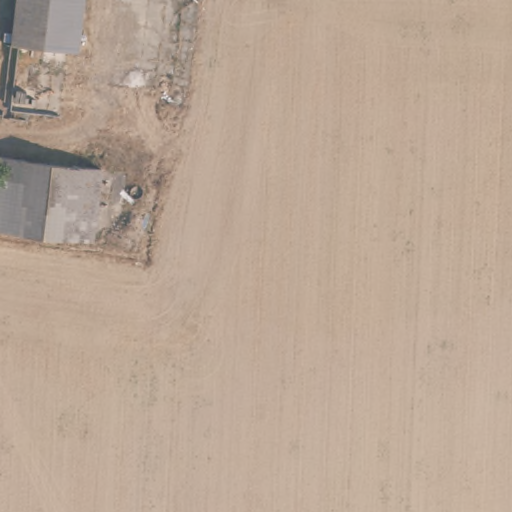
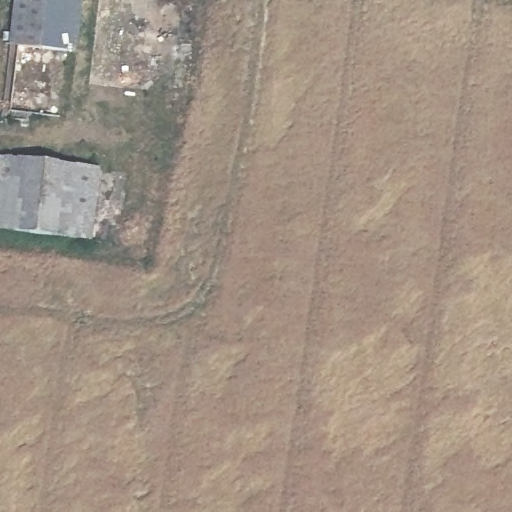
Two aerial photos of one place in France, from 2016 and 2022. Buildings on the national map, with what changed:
unchanged [(76,53),(9,45),(15,0),(82,0),(76,53)]
unchanged [(94,240),(0,230),(0,174),(2,158),(102,168),(94,240)]

